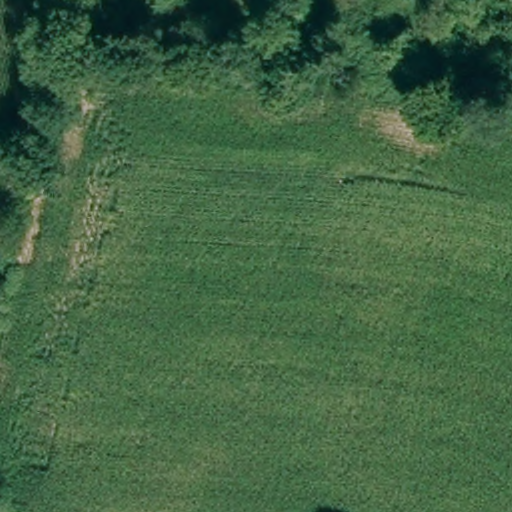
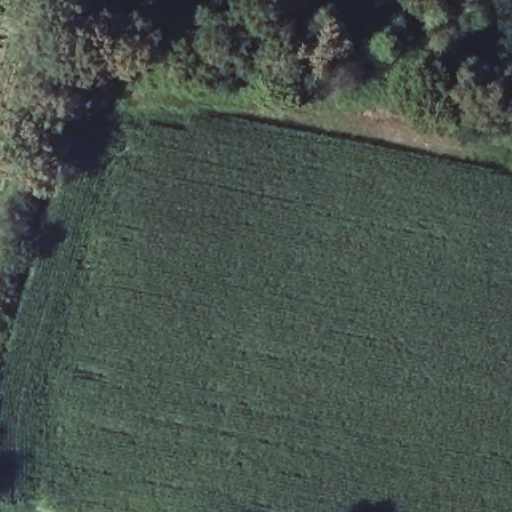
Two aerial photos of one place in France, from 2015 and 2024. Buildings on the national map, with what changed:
[]

